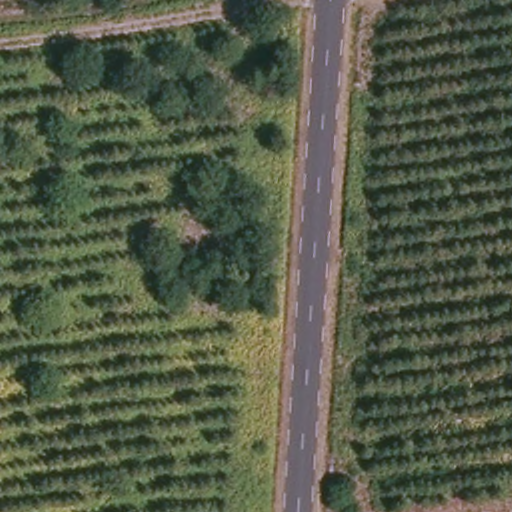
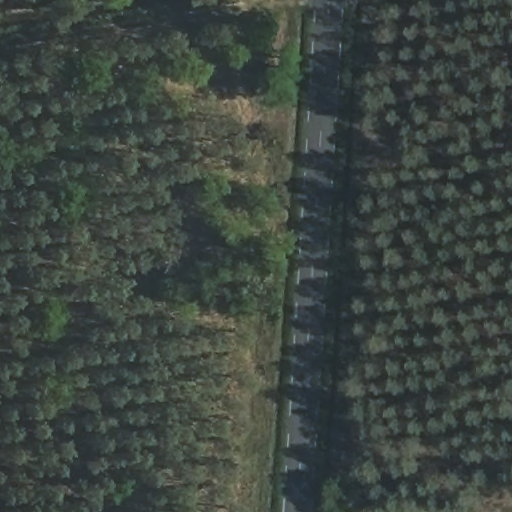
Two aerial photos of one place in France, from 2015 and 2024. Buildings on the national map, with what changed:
[]

